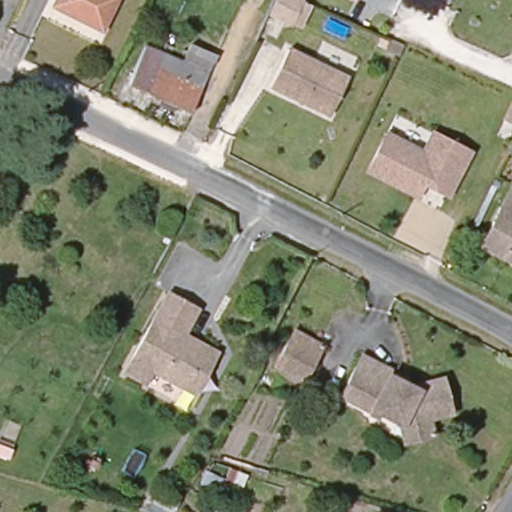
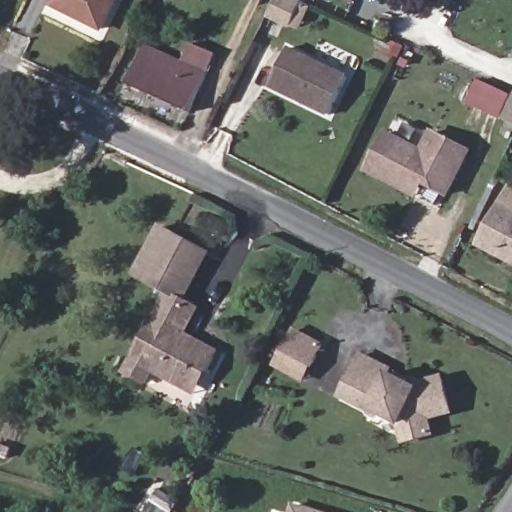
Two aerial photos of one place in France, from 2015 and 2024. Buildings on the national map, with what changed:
unchanged [(101,24),(55,6),(58,0),(113,0),(101,24)]
new [(304,28),(297,25),(272,14),(279,0),(302,0),(307,2),(314,5),(304,28)]
unchanged [(344,74),(328,110),(268,82),(285,47),(344,74)]
unchanged [(197,67),(185,93),(144,76),(156,48),(197,67)]
unchanged [(500,117),(512,91),(512,122),(500,117)]
unchanged [(407,191),(369,171),(388,135),(425,154),(434,135),(472,154),(448,197),(424,185),(418,198),(407,191)]
unchanged [(481,243),(512,189),(512,261),(481,243)]
new [(159,224),(212,253),(187,300),(166,288),(164,292),(134,274),(159,224)]
unchanged [(180,384),(148,367),(139,380),(119,370),(166,288),(196,306),(183,332),(201,342),(218,351),(214,357),(204,373),(193,391),(180,384)]
unchanged [(283,351),(294,328),(323,343),(310,365),(305,375),(278,360),(283,351)]
unchanged [(368,400),(366,402),(339,389),(359,350),(389,363),(387,369),(408,380),(438,373),(446,408),(422,414),(426,429),(403,434),(399,410),(381,400),(377,404),(368,400)]
new [(321,512),(290,512),(292,503),(321,512)]

